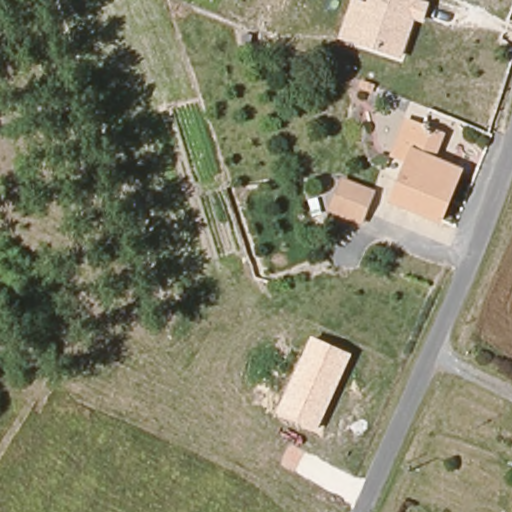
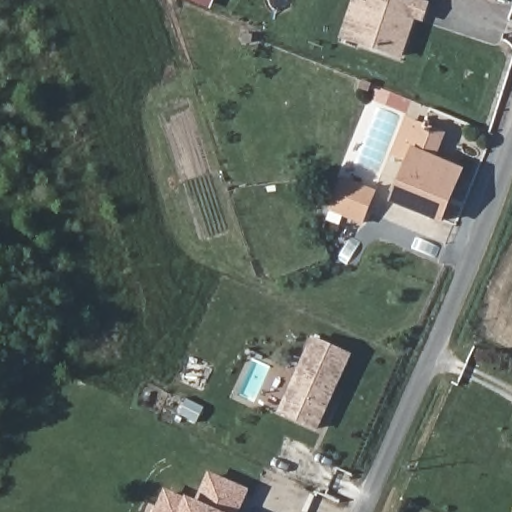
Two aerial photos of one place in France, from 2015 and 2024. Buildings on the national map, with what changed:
unchanged [(420,17),(406,57),(363,44),(378,0),(425,0),(424,4),(433,6),(429,21),(420,17)]
unchanged [(383,199),(416,116),(428,121),(425,130),(431,135),(425,155),(434,157),(438,149),(471,163),(464,184),(445,225),(383,199)]
unchanged [(345,177),(381,191),(368,225),(332,212),(345,177)]
unchanged [(317,431),(276,412),(311,337),(351,354),(317,431)]
new [(165,490),(185,498),(186,496),(195,500),(208,471),(250,490),(240,512),(154,512),(165,490)]

